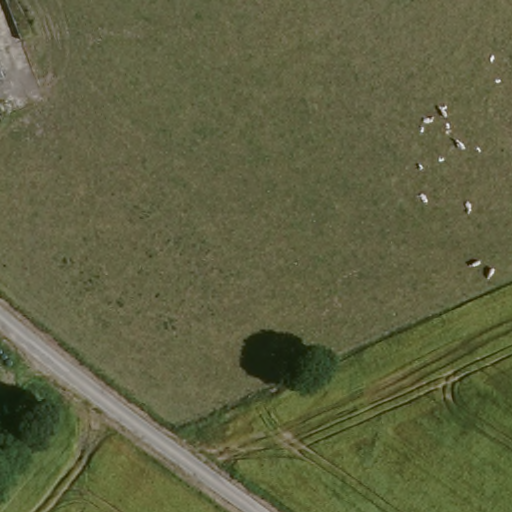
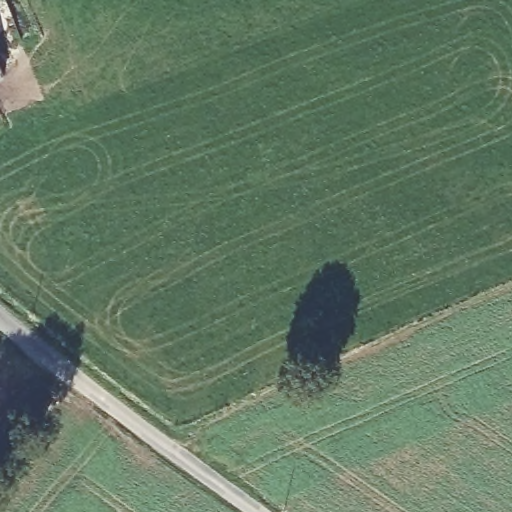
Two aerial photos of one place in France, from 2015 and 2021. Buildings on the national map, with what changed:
unchanged [(7,80),(0,82),(0,62),(7,80)]

